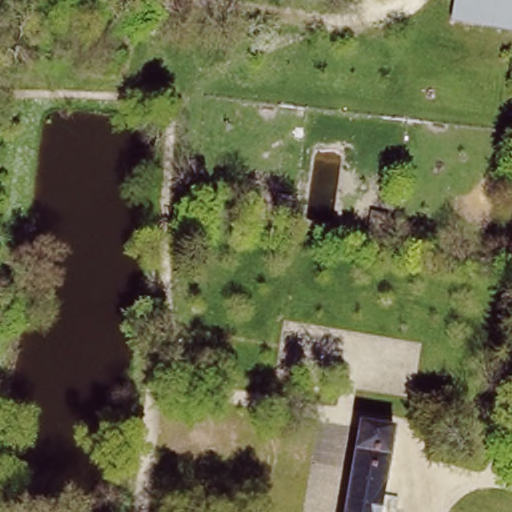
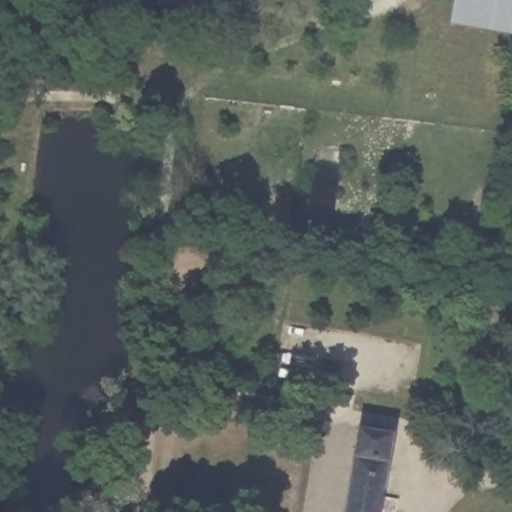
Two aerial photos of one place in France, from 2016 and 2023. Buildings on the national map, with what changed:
unchanged [(455,0),(512,0),(512,32),(452,23),(455,0)]
unchanged [(361,429),(397,435),(384,512),(346,512),(361,429)]

